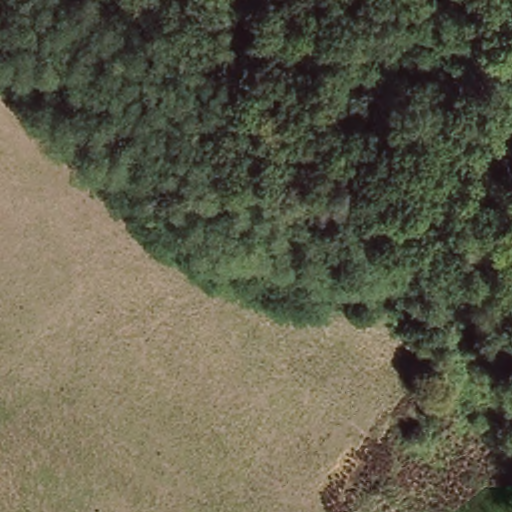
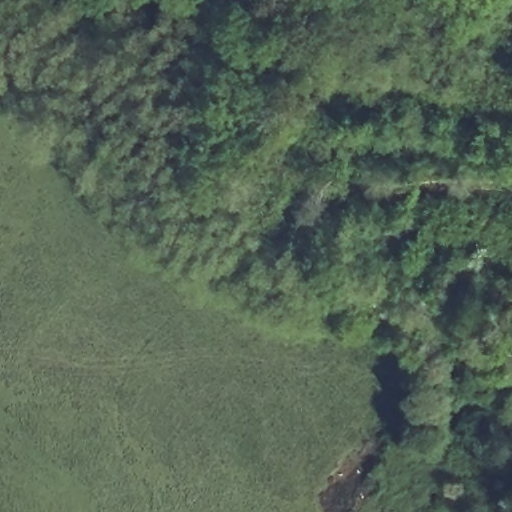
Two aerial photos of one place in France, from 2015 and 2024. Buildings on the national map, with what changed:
unchanged [(0,36),(0,13),(12,22),(0,36)]

